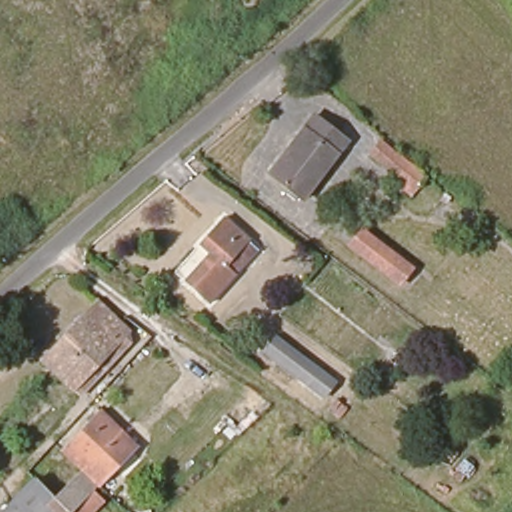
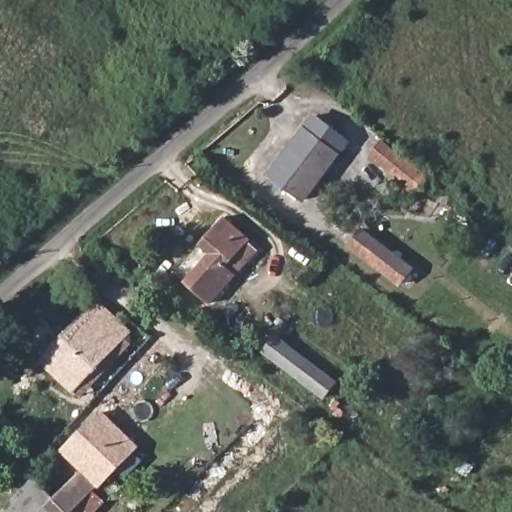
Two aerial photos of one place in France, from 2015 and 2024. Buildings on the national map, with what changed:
unchanged [(305,201),(271,175),(315,115),(351,141),(305,201)]
unchanged [(416,198),(396,183),(401,177),(371,155),(381,141),(431,180),(416,198)]
unchanged [(442,203),(435,198),(441,190),(448,195),(442,203)]
unchanged [(184,277),(210,247),(202,240),(226,214),(253,235),(230,263),(241,271),(214,301),(184,277)]
unchanged [(348,240),(360,226),(411,264),(400,279),(348,240)]
unchanged [(106,304),(133,327),(73,389),(43,358),(101,300),(106,304)]
unchanged [(260,356),(271,340),(332,384),(321,400),(260,356)]
unchanged [(83,467),(64,449),(103,408),(122,427),(83,467)]
unchanged [(9,504),(36,477),(51,492),(54,495),(83,467),(122,427),(138,444),(100,483),(97,487),(108,501),(97,512),(75,512),(72,510),(70,512),(1,512),(9,504)]

